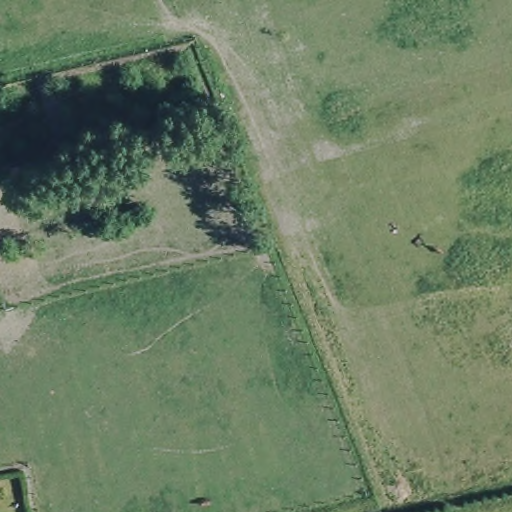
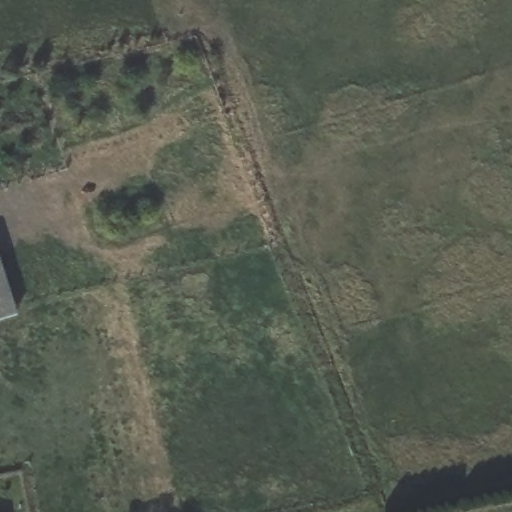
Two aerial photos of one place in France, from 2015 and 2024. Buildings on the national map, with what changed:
new [(0,319),(0,268),(15,315),(0,319)]

